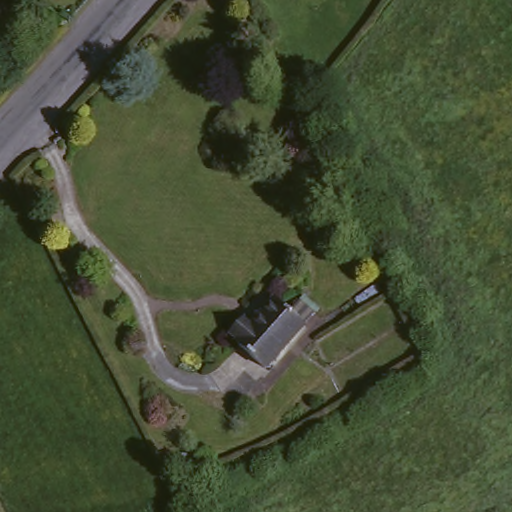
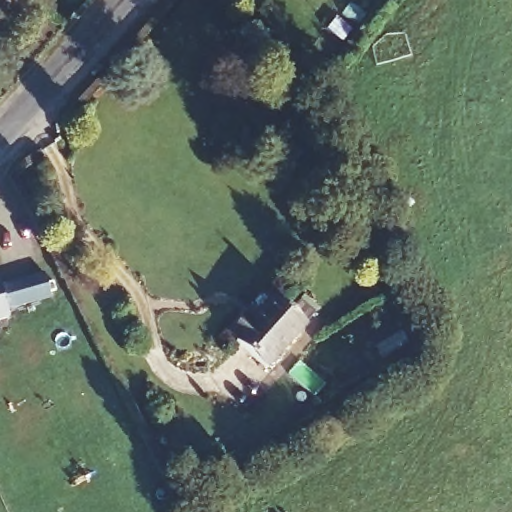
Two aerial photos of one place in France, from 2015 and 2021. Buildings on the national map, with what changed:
unchanged [(0,38),(0,0),(18,0),(30,16),(0,38)]
new [(6,307),(9,316),(0,318),(0,278),(1,282),(44,271),(51,296),(6,307)]
unchanged [(238,343),(240,341),(232,333),(242,322),(250,328),(274,298),(304,323),(267,368),(238,343)]

